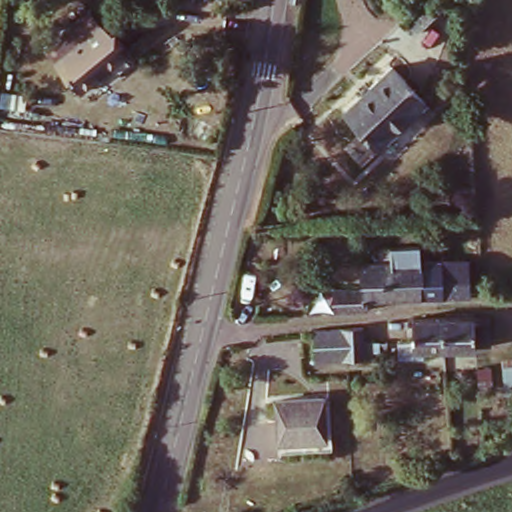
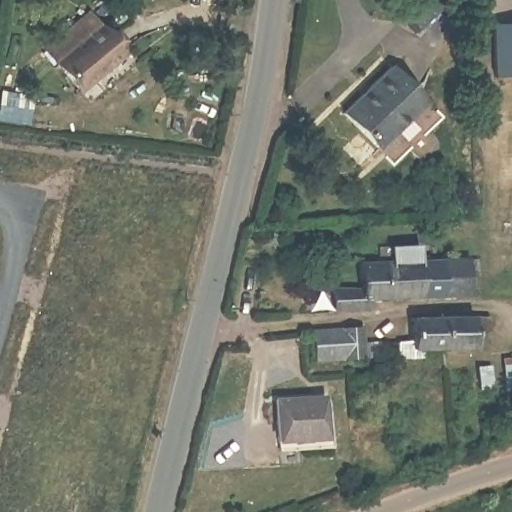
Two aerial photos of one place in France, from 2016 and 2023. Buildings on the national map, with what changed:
unchanged [(435,3),(439,6),(446,0),(452,6),(424,34),(414,24),(435,3)]
new [(512,25),(512,78),(496,79),(493,25),(512,25)]
unchanged [(60,65),(103,28),(130,55),(86,93),(60,65)]
unchanged [(389,63),(425,99),(377,146),(342,110),(389,63)]
unchanged [(360,292),(357,256),(377,255),(379,252),(415,250),(416,269),(442,268),(442,265),(466,266),(467,297),(443,298),(391,301),(391,311),(381,311),(381,307),(363,307),(363,314),(336,316),(330,316),(329,293),(360,292)]
unchanged [(413,355),(387,355),(386,336),(404,334),(402,312),(433,311),(462,311),(478,310),(479,337),(463,338),(463,343),(435,343),(413,342),(413,355)]
unchanged [(364,357),(309,362),(306,330),(363,326),(364,341),(372,342),(371,356),(364,357)]
unchanged [(512,358),(512,388),(506,358),(512,358)]
unchanged [(275,395),(321,395),(321,435),(274,436),(275,395)]

